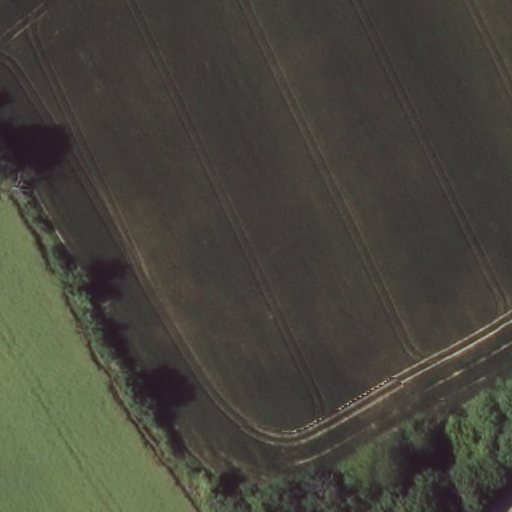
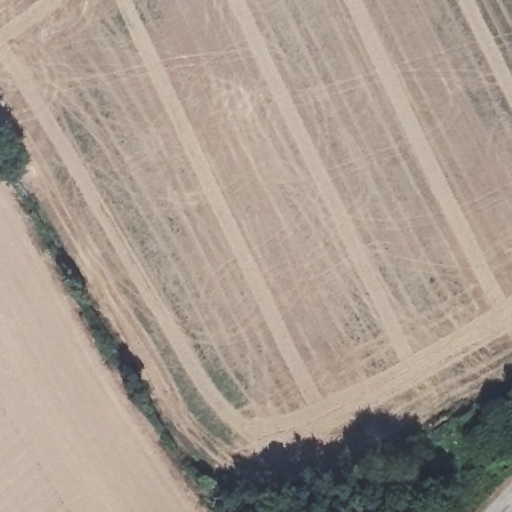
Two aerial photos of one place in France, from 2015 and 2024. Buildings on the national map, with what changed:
[]

